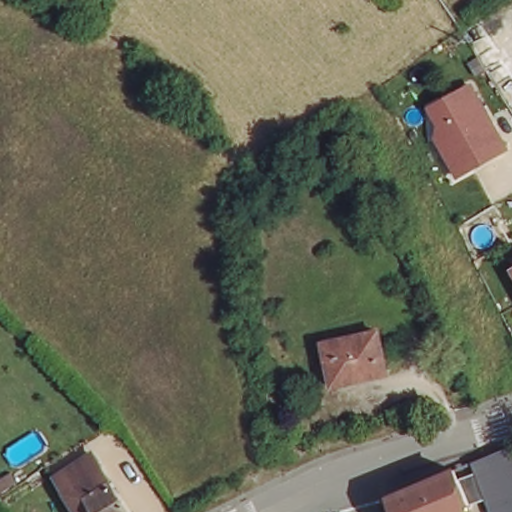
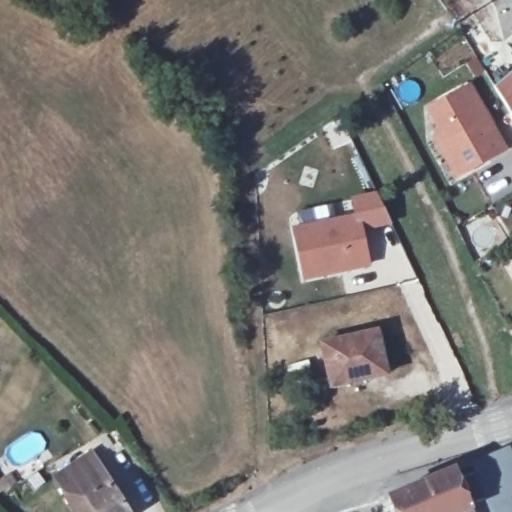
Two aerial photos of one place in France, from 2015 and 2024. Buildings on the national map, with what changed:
new [(488,83),(512,64),(512,114),(488,83)]
unchanged [(432,140),(437,124),(426,108),(471,85),(510,147),(453,179),(432,140)]
new [(298,223),(295,210),(327,203),(331,216),(352,211),(348,196),(376,189),(392,225),(365,232),(370,267),(301,283),(290,225),(298,223)]
unchanged [(381,326),(390,367),(335,380),(327,338),(381,326)]
unchanged [(452,468),(512,443),(512,490),(483,501),(468,508),(452,468)]
unchanged [(53,472),(90,448),(100,464),(109,480),(117,492),(120,491),(132,512),(78,512),(72,502),(63,487),(53,472)]
unchanged [(468,508),(458,512),(394,512),(387,495),(452,468),(468,508)]
unchanged [(512,490),(512,512),(488,512),(483,501),(512,490)]

